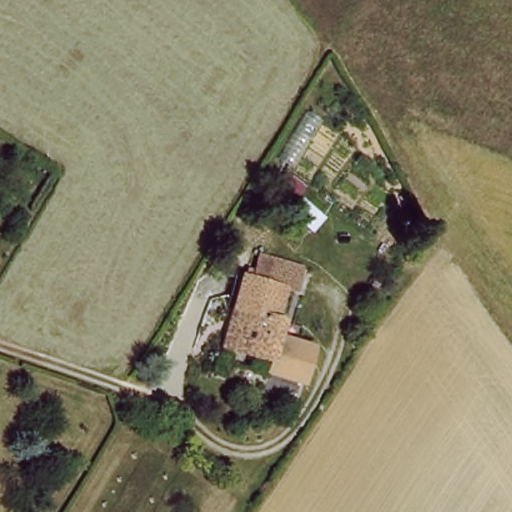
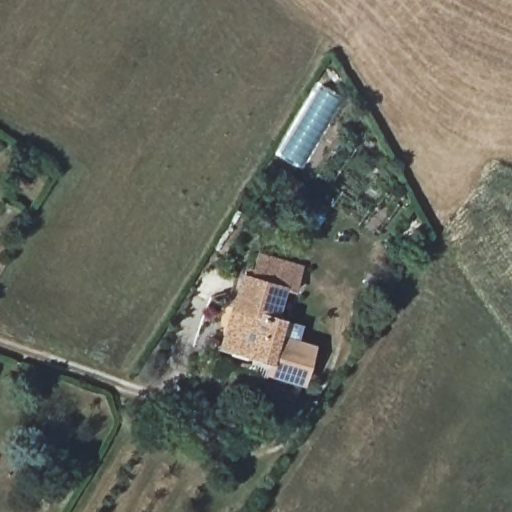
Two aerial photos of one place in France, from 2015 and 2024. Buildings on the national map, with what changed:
unchanged [(282,288),(276,320),(288,321),(276,366),(218,352),(239,277),(282,288)]

